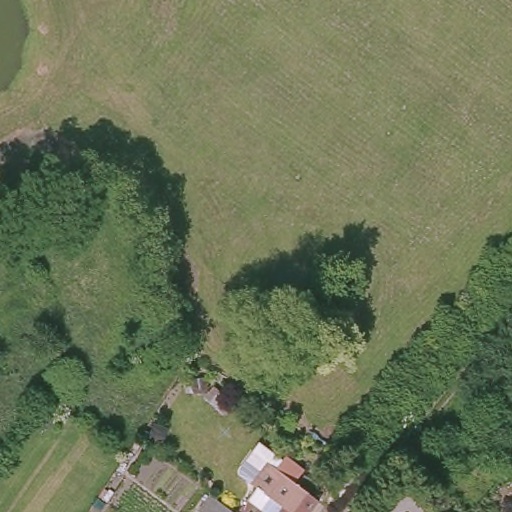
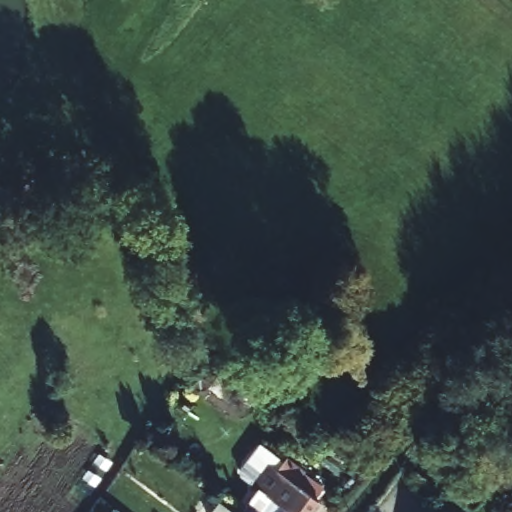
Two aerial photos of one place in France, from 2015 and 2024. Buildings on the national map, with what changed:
unchanged [(256,491),(240,478),(239,473),(259,447),(282,465),(285,461),(303,475),(293,487),(296,490),(303,480),(315,490),(308,499),(316,505),(312,512),(240,512),(256,491)]
unchanged [(207,498),(217,505),(226,512),(197,512),(207,498)]

